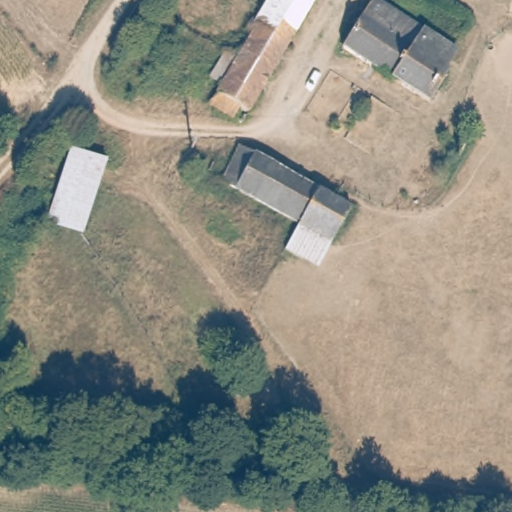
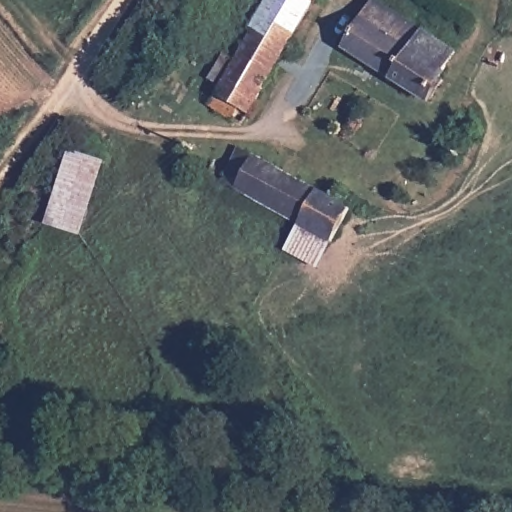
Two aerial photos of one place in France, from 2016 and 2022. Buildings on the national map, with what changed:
unchanged [(229,52),(243,60),(259,32),(252,28),(269,0),(317,0),(254,111),(246,107),(240,118),(215,103),(227,88),(213,80),(229,52)]
unchanged [(423,93),(342,40),(370,0),(385,0),(455,48),(423,93)]
unchanged [(253,152),(355,205),(318,264),(286,247),(299,221),(232,188),(220,181),(240,144),(253,152)]
unchanged [(109,157),(83,232),(46,224),(69,146),(109,157)]

